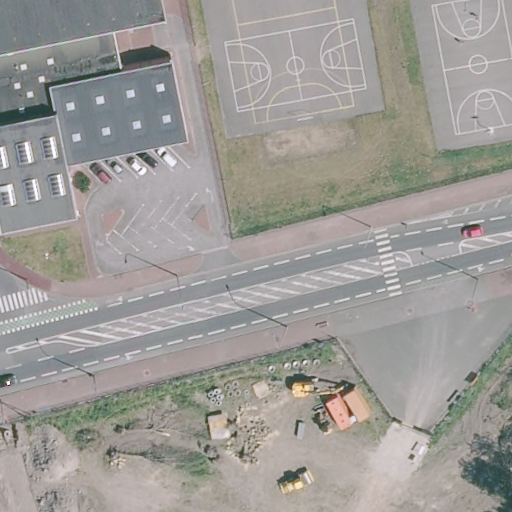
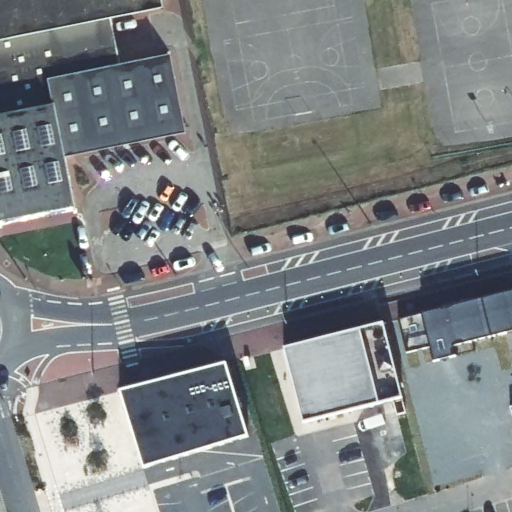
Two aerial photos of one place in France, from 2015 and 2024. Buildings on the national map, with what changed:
unchanged [(109,17),(119,64),(168,52),(185,132),(148,140),(65,157),(74,205),(0,220),(0,0),(161,0),(162,6),(109,17)]
new [(455,347),(452,357),(433,361),(430,347),(407,353),(398,320),(422,313),(512,292),(512,331),(455,347)]
new [(401,398),(302,422),(284,347),(384,323),(401,398)]
new [(229,360),(251,435),(142,465),(119,388),(229,360)]
demolished [(319,400),(379,426),(364,460),(303,434),(319,400)]
new [(510,408),(512,408),(512,413),(510,408)]
demolished [(240,481),(228,512),(186,512),(188,508),(197,511),(215,471),(217,471),(240,481)]

